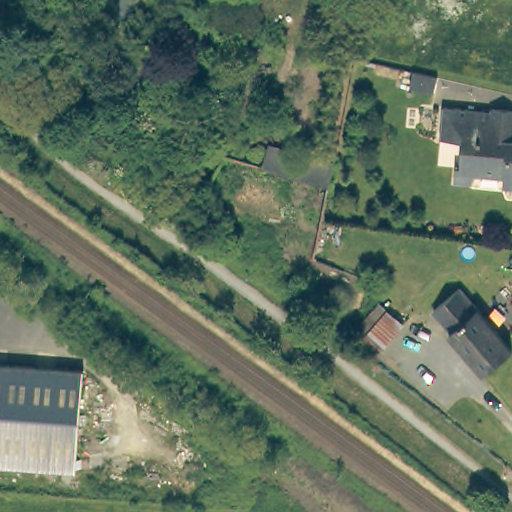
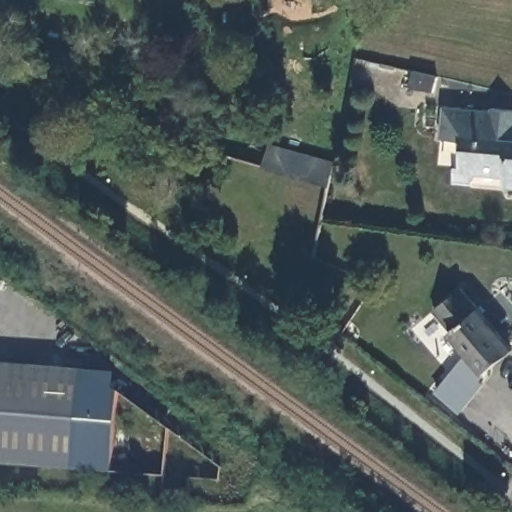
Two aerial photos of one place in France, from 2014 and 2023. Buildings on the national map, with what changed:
unchanged [(431,87),(407,82),(411,67),(435,72),(431,87)]
unchanged [(491,113),(491,111),(512,113),(512,189),(504,187),(505,176),(476,172),(471,184),(454,182),(456,167),(460,167),(463,142),(441,139),(445,107),(491,113)]
unchanged [(263,146),(288,151),(332,161),(327,182),(258,167),(263,146)]
unchanged [(456,286),(509,350),(481,372),(445,331),(447,329),(430,308),(456,286)]
new [(483,385),(459,415),(432,394),(464,352),(481,372),(483,385)]
unchanged [(75,467),(0,462),(0,363),(82,368),(75,467)]
new [(82,368),(114,371),(111,391),(116,391),(110,470),(75,467),(82,368)]

